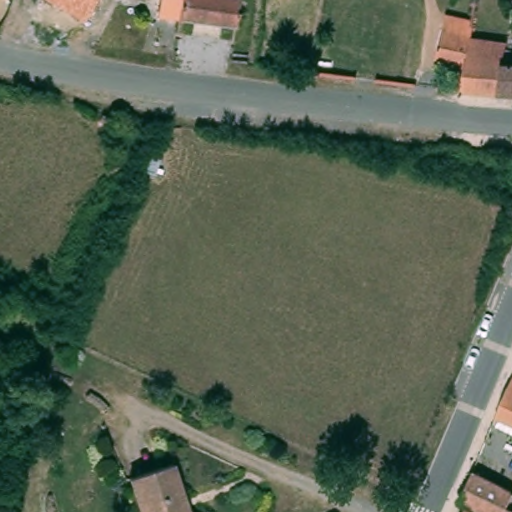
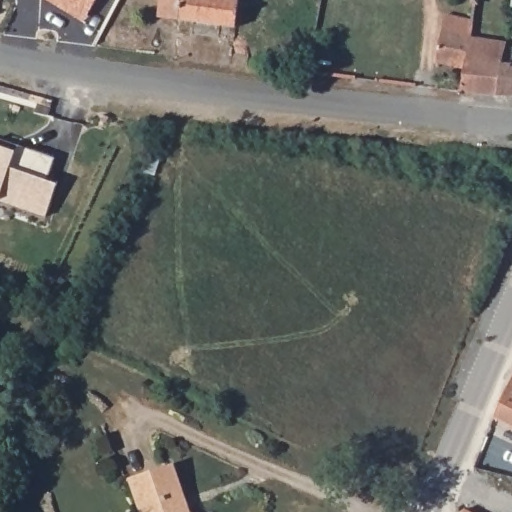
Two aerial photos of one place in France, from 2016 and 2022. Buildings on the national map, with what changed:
unchanged [(79,20),(45,0),(91,0),(79,20)]
unchanged [(180,20),(160,16),(161,0),(239,0),(235,27),(180,20)]
unchanged [(510,4),(512,4),(512,13),(509,13),(510,4)]
unchanged [(434,57),(440,25),(443,10),(472,15),(469,31),(469,32),(502,39),(501,46),(495,92),(457,90),(463,65),(434,57)]
unchanged [(501,46),(512,47),(512,93),(495,92),(501,46)]
new [(16,152),(18,145),(32,150),(55,158),(47,180),(57,184),(46,217),(0,201),(0,146),(16,152)]
unchanged [(512,375),(512,419),(494,411),(506,383),(507,383),(512,375)]
unchanged [(175,465),(185,496),(178,498),(183,512),(142,512),(131,480),(175,465)]
unchanged [(506,512),(473,512),(459,505),(472,475),(512,496),(505,511),(506,512)]

